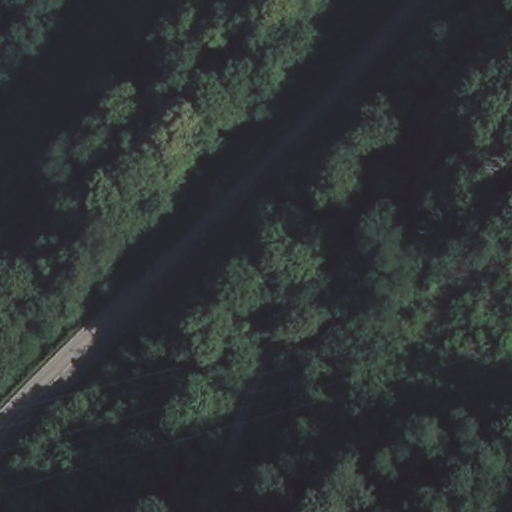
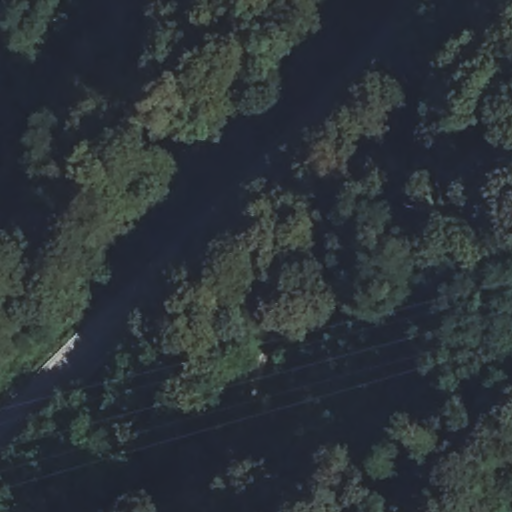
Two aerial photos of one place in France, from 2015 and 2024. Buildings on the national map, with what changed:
[]

